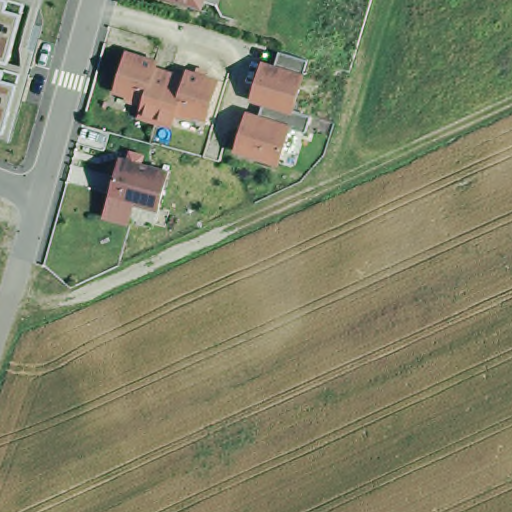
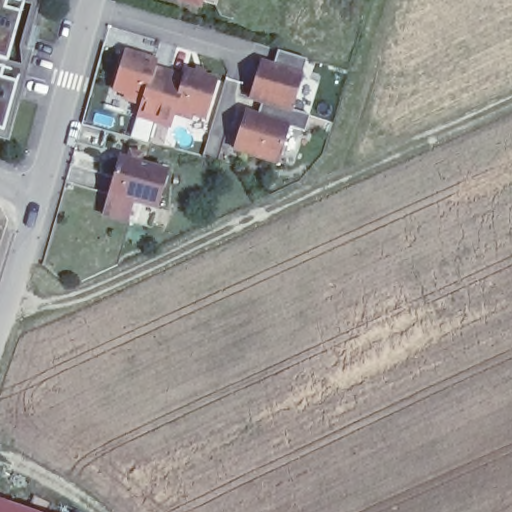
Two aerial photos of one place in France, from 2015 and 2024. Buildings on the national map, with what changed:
unchanged [(22,12),(8,61),(0,59),(0,0),(15,0),(25,2),(22,12)]
unchanged [(180,0),(196,0),(195,5),(180,0)]
unchanged [(211,0),(210,4),(196,0),(211,0)]
unchanged [(240,134),(243,135),(246,125),(243,124),(247,112),(258,116),(263,102),(250,98),(255,86),(257,87),(260,77),(257,77),(262,62),(273,66),(278,50),(307,59),(292,109),(310,115),(305,131),(288,126),(278,162),(235,150),(240,134)]
unchanged [(157,61),(155,68),(184,77),(186,70),(217,80),(205,117),(192,114),(190,119),(173,113),(170,125),(138,116),(142,105),(125,99),(127,94),(114,90),(125,52),(157,61)]
unchanged [(20,72),(18,82),(5,132),(0,130),(0,67),(5,68),(20,72)]
unchanged [(104,210),(109,191),(120,152),(168,165),(157,204),(152,222),(104,210)]
new [(38,512),(4,512),(7,501),(38,512)]

